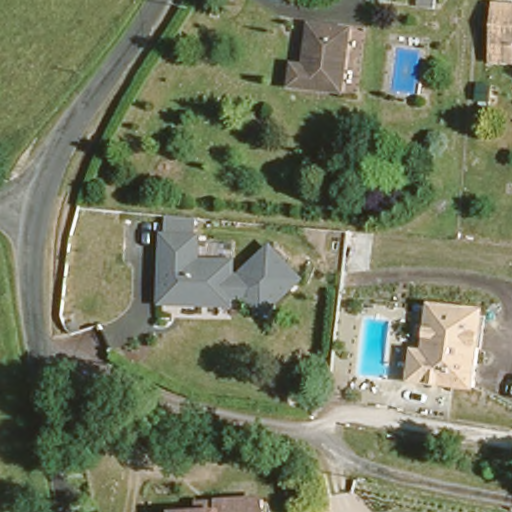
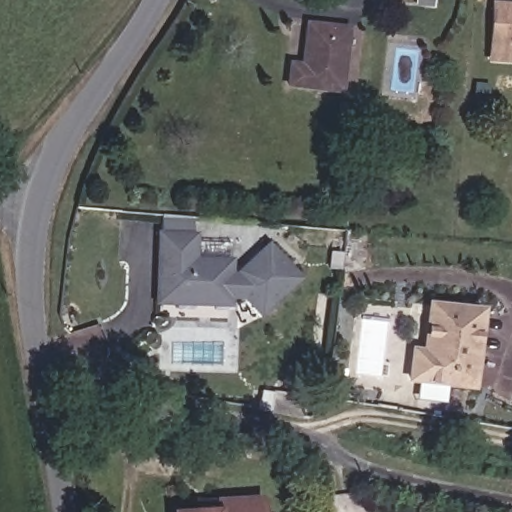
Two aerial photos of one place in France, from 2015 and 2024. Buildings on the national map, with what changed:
unchanged [(386,0),(437,0),(437,5),(386,0)]
unchanged [(492,55),(497,0),(512,2),(512,56),(492,55)]
unchanged [(340,83),(287,79),(289,60),(302,62),(308,16),(347,21),(340,83)]
unchanged [(301,280),(262,319),(244,301),(233,300),(233,308),(156,307),(160,232),(199,235),(197,256),(234,258),(234,273),(267,243),(301,280)]
unchanged [(430,353),(434,300),(479,308),(471,384),(414,378),(416,351),(430,353)]
unchanged [(448,437),(443,457),(410,450),(415,430),(448,437)]
unchanged [(175,500),(204,500),(205,488),(220,488),(263,490),(262,512),(174,512),(175,500)]

